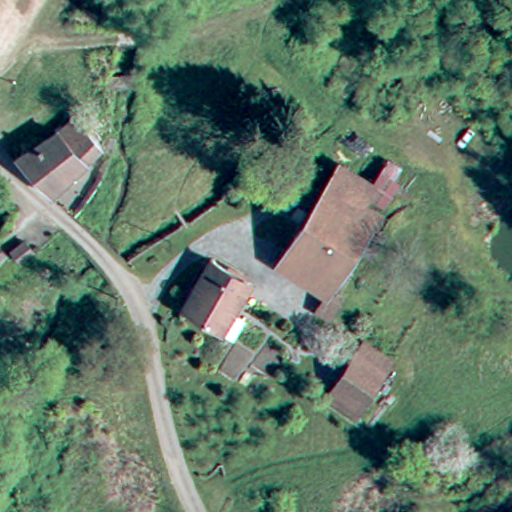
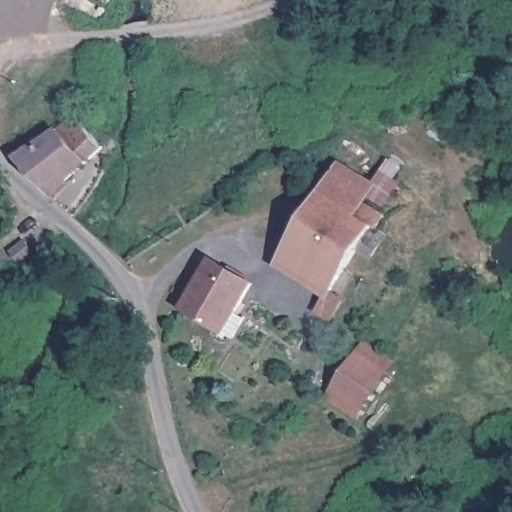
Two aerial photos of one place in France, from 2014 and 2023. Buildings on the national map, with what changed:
unchanged [(67,4),(69,0),(113,0),(102,23),(79,11),(67,4)]
unchanged [(16,71),(24,70),(24,80),(16,80),(16,71)]
unchanged [(46,183),(29,167),(65,130),(72,138),(90,127),(97,133),(115,152),(100,166),(64,200),(46,183)]
unchanged [(115,159),(123,142),(129,146),(122,162),(115,159)]
unchanged [(346,276),(340,286),(325,312),(317,307),(302,298),(275,281),(346,170),(356,155),(363,145),(369,149),(390,164),(392,165),(382,180),(404,197),(396,207),(392,215),(398,219),(389,234),(377,227),(362,251),(346,276)]
unchanged [(12,248),(22,239),(32,250),(22,259),(12,248)]
unchanged [(7,255),(0,267),(0,250),(7,255)]
unchanged [(191,316),(214,273),(217,268),(259,292),(251,306),(230,340),(191,316)]
unchanged [(400,364),(362,418),(333,401),(372,344),(400,364)]

